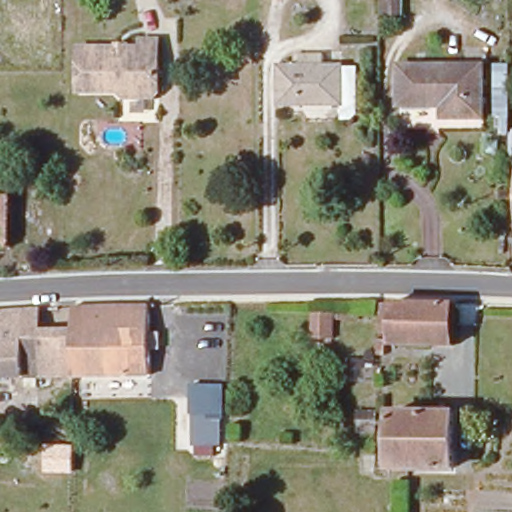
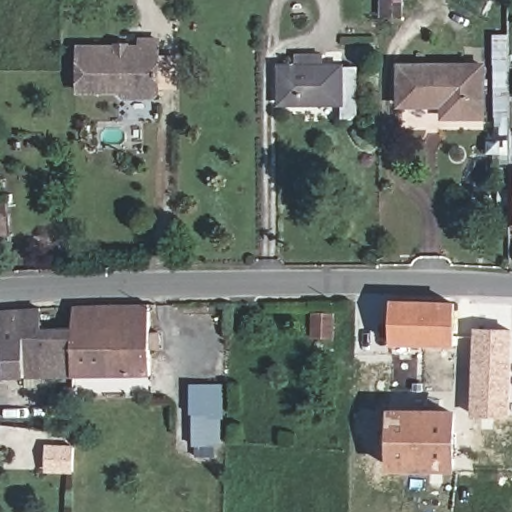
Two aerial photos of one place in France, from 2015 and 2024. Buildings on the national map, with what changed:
unchanged [(155,89),(145,99),(122,100),(115,91),(75,91),(75,46),(138,47),(139,39),(156,39),(155,89)]
unchanged [(353,120),(350,125),(338,126),(338,111),(276,110),(277,73),(291,72),(292,60),(317,60),(318,72),(352,72),(353,120)]
unchanged [(483,119),(443,119),(443,106),(399,106),(400,67),(482,66),(483,119)]
demolished [(6,250),(0,250),(0,199),(7,199),(6,250)]
unchanged [(451,342),(390,342),(391,299),(452,300),(451,342)]
unchanged [(156,352),(147,352),(147,378),(70,379),(72,308),(99,306),(147,306),(147,334),(156,334),(156,352)]
unchanged [(0,380),(0,314),(72,308),(70,379),(0,380)]
unchanged [(330,336),(310,337),(310,310),(330,310),(330,336)]
new [(475,329),(512,330),(512,394),(511,419),(471,417),(475,329)]
unchanged [(222,385),(222,399),(192,399),(192,384),(222,385)]
unchanged [(219,443),(195,443),(196,413),(220,414),(219,443)]
unchanged [(450,414),(450,469),(389,469),(390,414),(450,414)]

